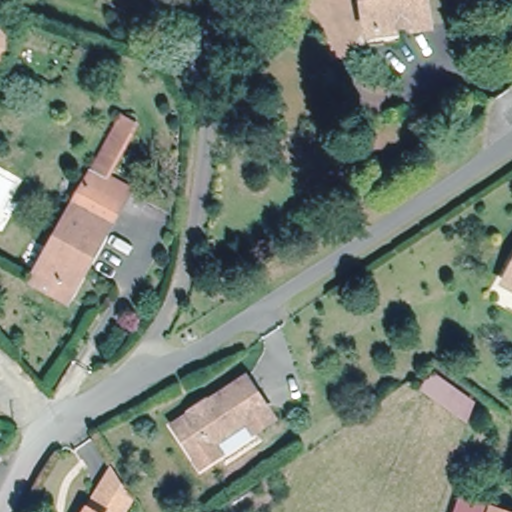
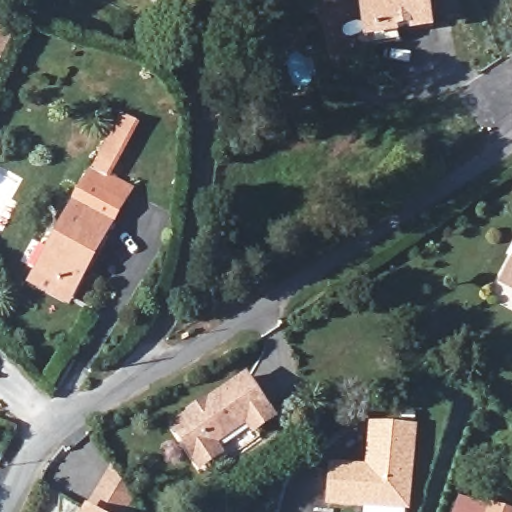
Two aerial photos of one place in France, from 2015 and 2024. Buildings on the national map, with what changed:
unchanged [(425,0),(427,15),(399,19),(400,31),(373,36),(368,0),(425,0)]
unchanged [(1,66),(0,65),(0,37),(12,43),(1,66)]
unchanged [(138,121),(107,177),(129,188),(69,297),(31,277),(121,113),(138,121)]
unchanged [(507,277),(512,268),(512,280),(507,277)]
unchanged [(275,416),(256,429),(249,418),(215,441),(222,452),(203,465),(175,424),(195,411),(192,408),(205,400),(207,402),(247,375),(275,416)]
new [(334,463),(376,466),(376,459),(370,458),(373,425),(415,428),(408,506),(331,499),(334,463)]
unchanged [(108,466),(123,490),(109,512),(85,512),(80,509),(108,466)]
unchanged [(495,508),(494,512),(458,512),(464,496),(495,508)]
unchanged [(495,508),(505,512),(494,512),(495,508)]
unchanged [(80,509),(85,512),(78,512),(80,509)]

